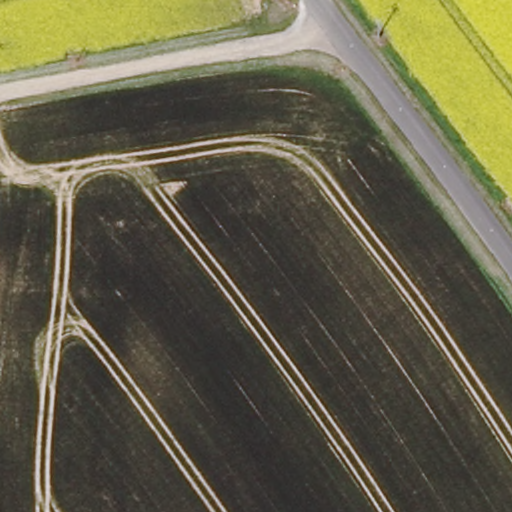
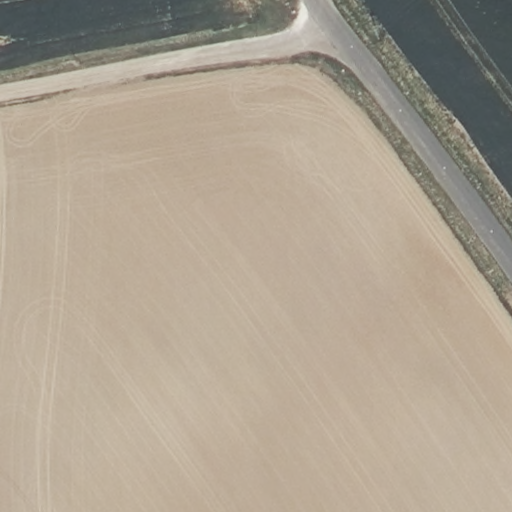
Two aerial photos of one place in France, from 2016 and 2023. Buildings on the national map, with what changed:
[]

